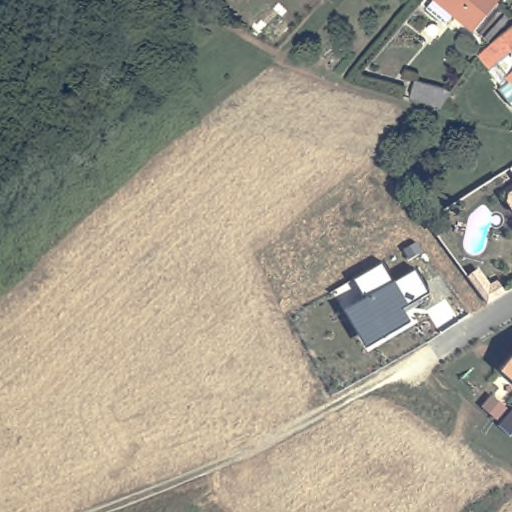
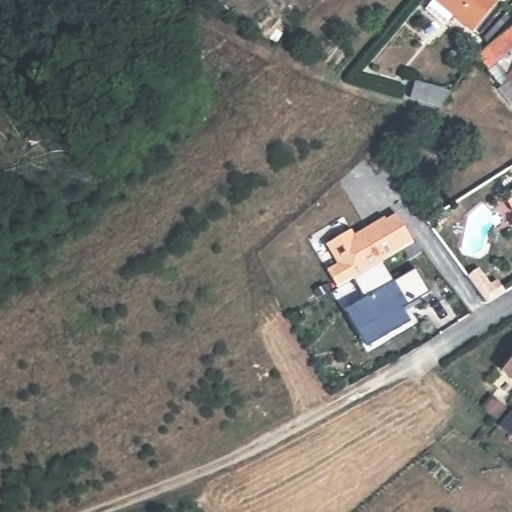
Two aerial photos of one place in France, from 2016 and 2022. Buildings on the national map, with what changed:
unchanged [(210,0),(233,0),(223,11),(210,0)]
unchanged [(479,31),(440,0),(505,0),(479,31)]
unchanged [(512,26),(512,71),(491,43),(512,26)]
unchanged [(447,94),(445,111),(411,104),(415,84),(447,94)]
new [(328,269),(338,263),(327,243),(352,229),(355,234),(385,216),(386,219),(397,213),(414,242),(339,287),(328,269)]
unchanged [(346,311),(366,297),(354,279),(383,261),(393,280),(416,268),(430,292),(404,309),(411,321),(367,346),(346,311)]
unchanged [(512,357),(512,379),(502,370),(512,357)]

